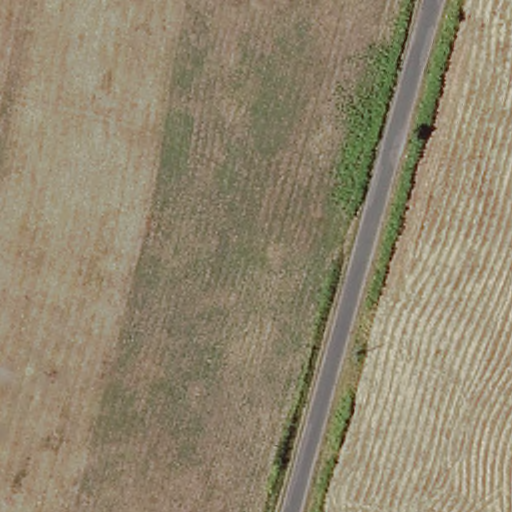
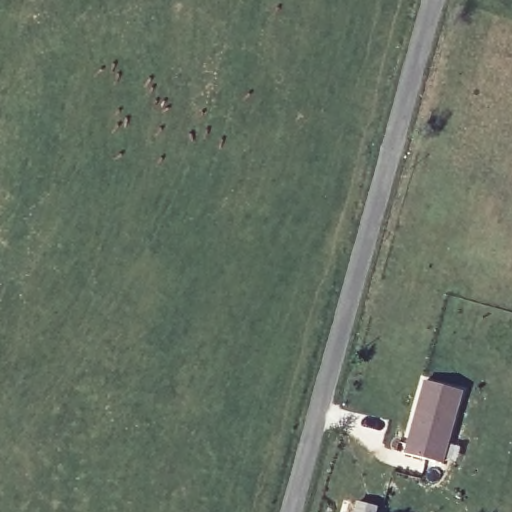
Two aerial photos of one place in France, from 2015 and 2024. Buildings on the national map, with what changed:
new [(423,381),(461,392),(441,464),(405,453),(423,381)]

